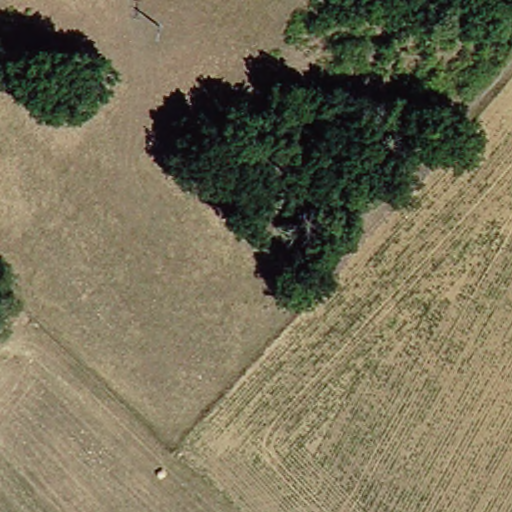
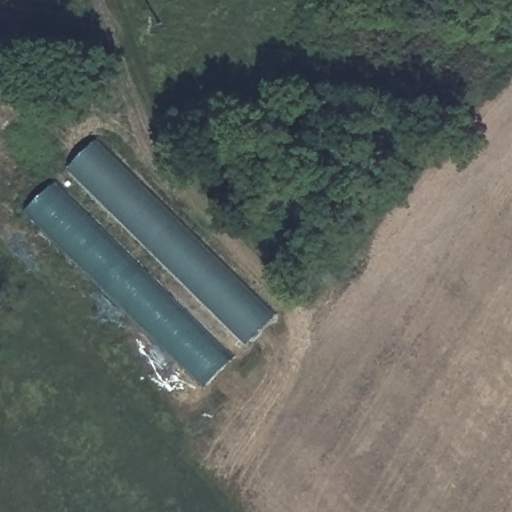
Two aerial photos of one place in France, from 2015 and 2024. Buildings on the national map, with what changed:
new [(70,168),(96,144),(268,314),(243,339),(70,168)]
new [(230,361),(206,386),(30,209),(57,182),(230,361)]

